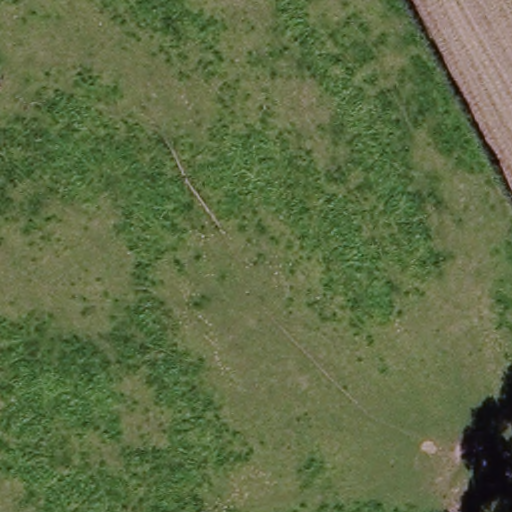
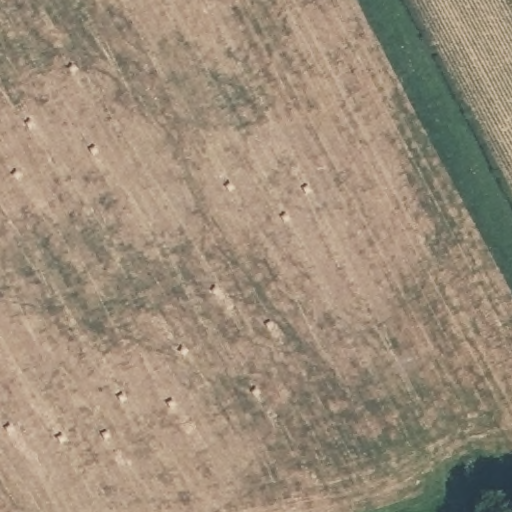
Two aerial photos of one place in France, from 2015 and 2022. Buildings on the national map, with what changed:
[]

